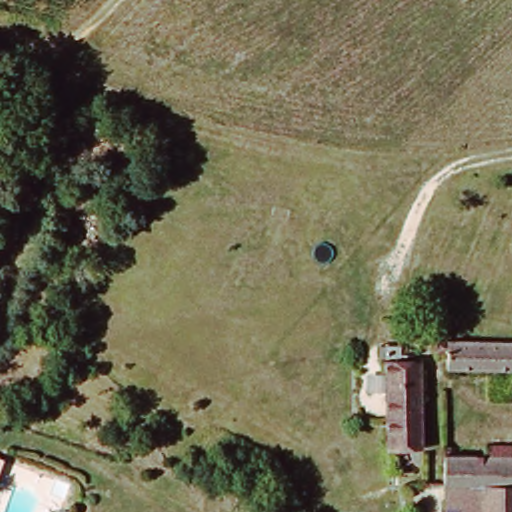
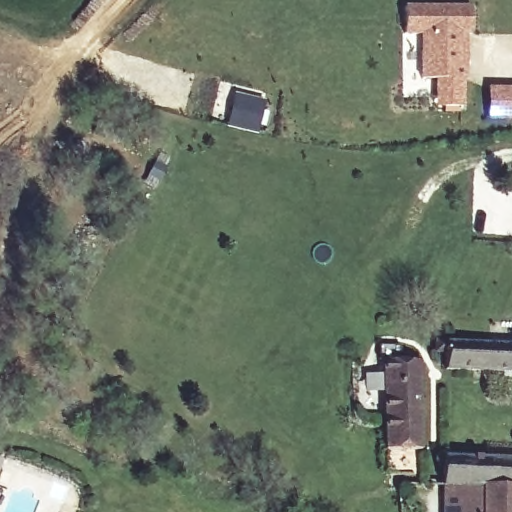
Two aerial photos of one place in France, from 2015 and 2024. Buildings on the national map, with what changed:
new [(422,80),(422,35),(405,35),(405,7),(473,7),(473,35),(468,36),(467,81),(464,80),(464,108),(437,108),(437,80),(422,80)]
new [(491,88),(512,88),(512,120),(491,119),(491,88)]
new [(235,97),(260,103),(253,133),(227,126),(235,97)]
unchanged [(455,341),(512,343),(512,369),(455,367),(455,341)]
unchanged [(423,448),(388,447),(390,359),(425,360),(423,448)]
unchanged [(450,487),(451,458),(512,459),(512,512),(454,512),(455,487),(450,487)]

